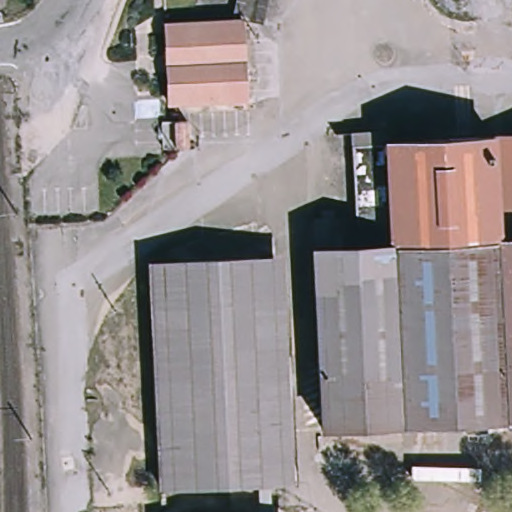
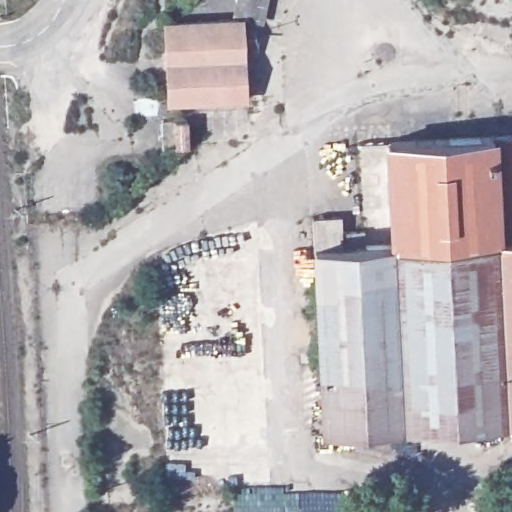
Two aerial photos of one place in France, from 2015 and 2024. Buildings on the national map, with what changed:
unchanged [(254,19),(235,16),(237,2),(232,1),(232,0),(258,0),(254,19)]
unchanged [(192,23),(238,20),(242,99),(165,103),(161,24),(192,23)]
unchanged [(189,121),(190,147),(178,147),(177,121),(189,121)]
unchanged [(308,213),(337,212),(338,226),(360,225),(356,138),(355,126),(383,125),(384,136),(512,130),(512,415),(318,425),(308,213)]
demolished [(148,258),(255,253),(266,479),(159,484),(148,258)]
demolished [(135,512),(111,512),(111,509),(135,507),(135,512)]

